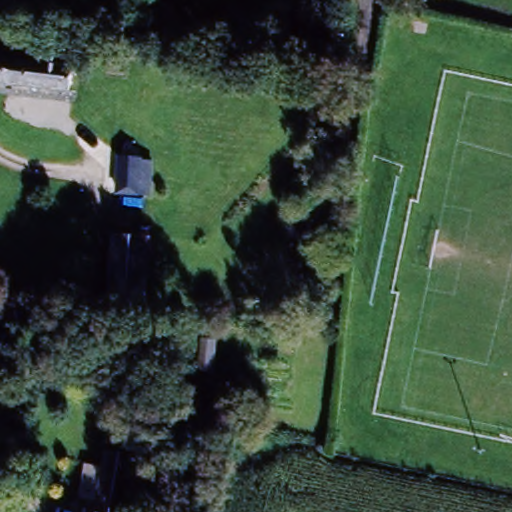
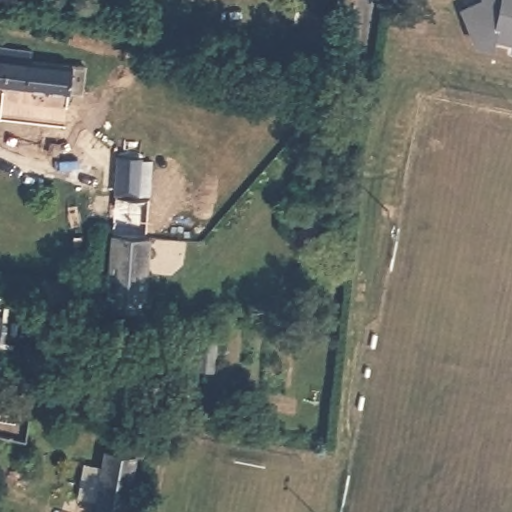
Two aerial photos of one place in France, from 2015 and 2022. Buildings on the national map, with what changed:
new [(492,48),(475,44),(467,25),(461,11),(482,3),(483,0),(512,0),(512,45),(493,41),(492,48)]
unchanged [(322,33),(304,31),(305,20),(323,21),(322,33)]
unchanged [(32,60),(31,68),(70,73),(66,99),(0,90),(0,57),(32,60)]
unchanged [(119,218),(133,220),(154,223),(151,245),(142,322),(106,317),(116,240),(119,218)]
unchanged [(27,329),(42,331),(40,345),(26,344),(27,329)]
unchanged [(56,334),(69,335),(68,349),(55,347),(56,334)]
unchanged [(212,361),(206,389),(196,387),(201,360),(212,361)]
unchanged [(78,496),(83,464),(102,467),(104,452),(132,457),(123,512),(94,512),(96,499),(78,496)]

